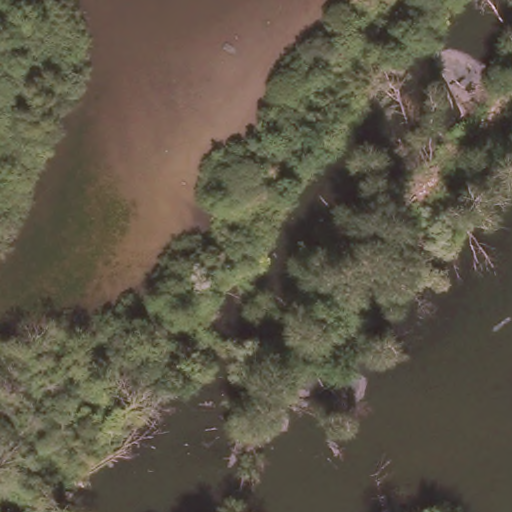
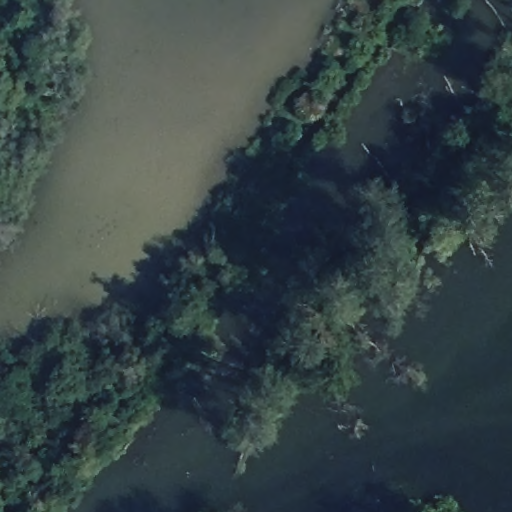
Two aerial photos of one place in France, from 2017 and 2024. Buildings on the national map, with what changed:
unchanged [(324,82),(338,91),(326,108),(314,99),(324,82)]

